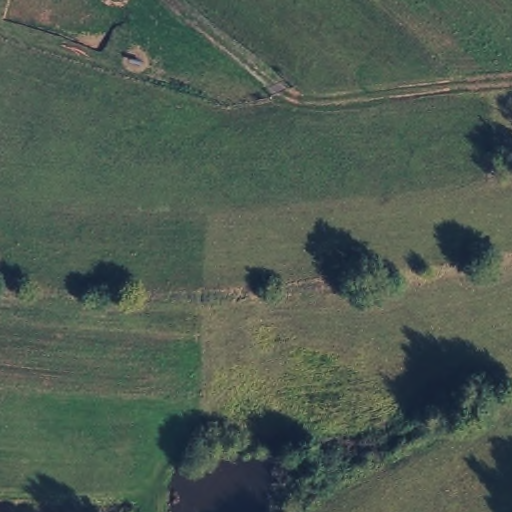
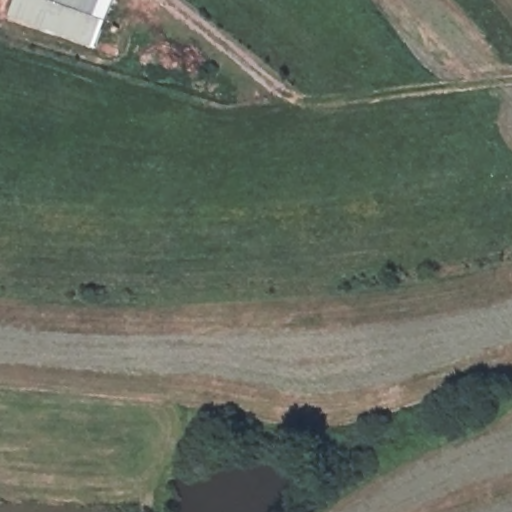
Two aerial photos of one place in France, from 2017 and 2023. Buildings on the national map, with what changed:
new [(112,0),(101,48),(7,21),(14,0),(112,0)]

